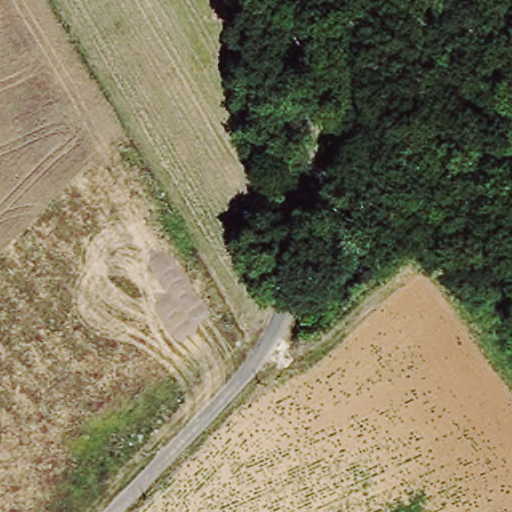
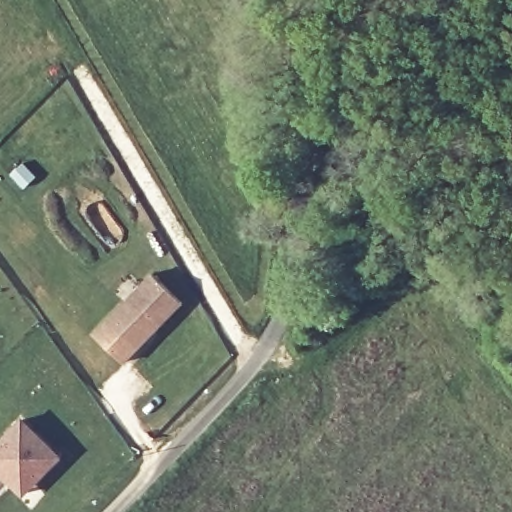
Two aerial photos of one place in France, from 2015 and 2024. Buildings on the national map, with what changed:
new [(152,275),(181,302),(124,362),(94,334),(152,275)]
new [(0,471),(0,442),(22,420),(60,457),(23,494),(0,471)]

